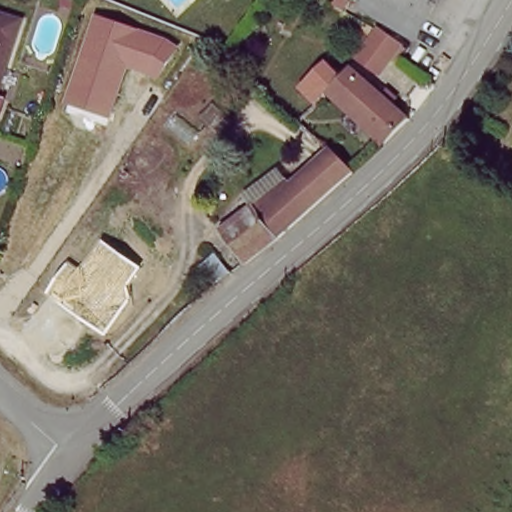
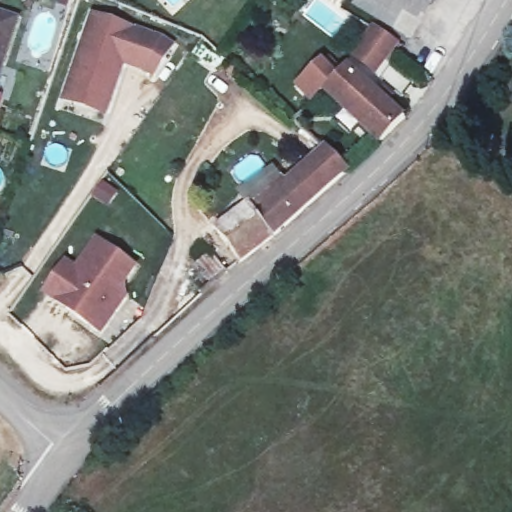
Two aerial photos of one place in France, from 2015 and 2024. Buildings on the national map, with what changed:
unchanged [(410,35),(357,4),(360,0),(432,0),(410,35)]
unchanged [(15,13),(0,59),(0,8),(15,13)]
unchanged [(155,34),(176,45),(155,77),(126,70),(107,119),(60,102),(91,14),(155,34)]
unchanged [(376,76),(351,62),(373,26),(396,40),(393,45),(376,76)]
unchanged [(295,86),(325,60),(340,76),(330,88),(312,104),(295,86)]
unchanged [(347,67),(406,117),(405,120),(398,126),(388,136),(382,141),(330,88),(347,67)]
unchanged [(221,230),(272,184),(276,188),(326,140),(351,165),(340,175),(280,231),(244,260),(221,230)]
unchanged [(43,293),(65,260),(77,269),(98,240),(138,268),(125,287),(128,297),(101,335),(43,293)]

